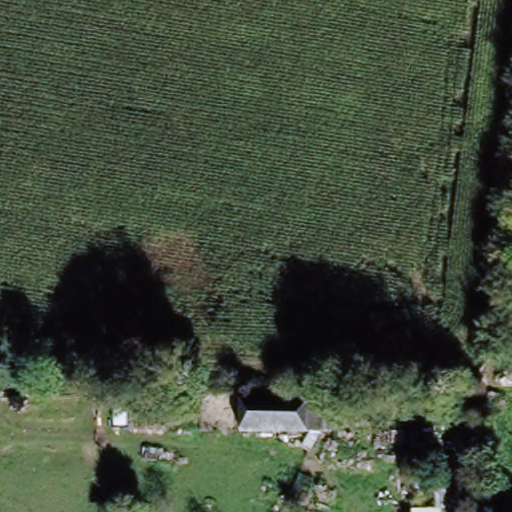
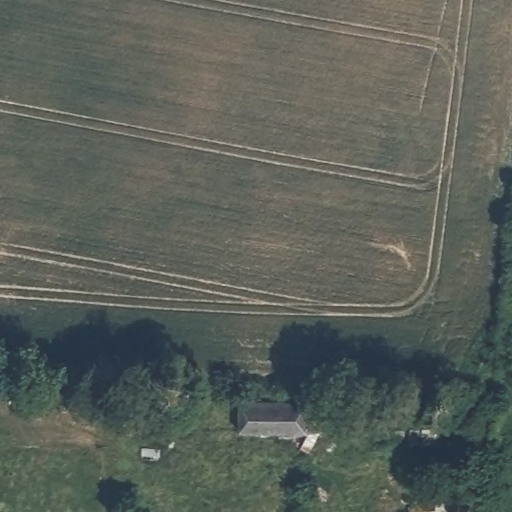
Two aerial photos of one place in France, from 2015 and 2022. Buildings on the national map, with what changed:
unchanged [(312,431),(296,431),(238,429),(238,399),(297,401),(313,401),(312,431)]

